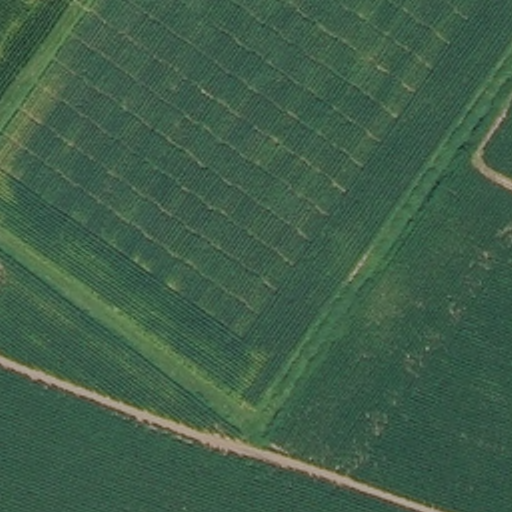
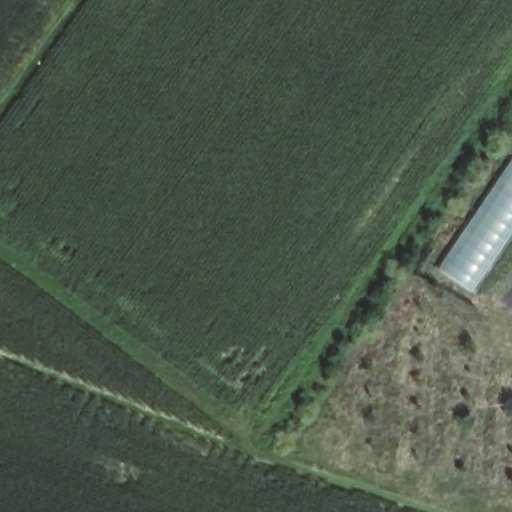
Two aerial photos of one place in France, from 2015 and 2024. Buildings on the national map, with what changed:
new [(512,233),(472,293),(436,269),(512,157),(512,233)]

